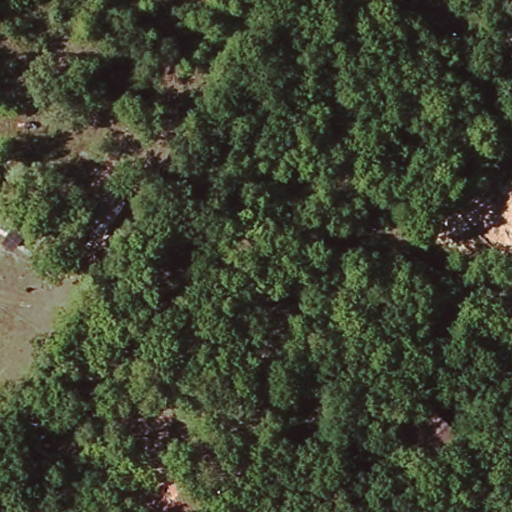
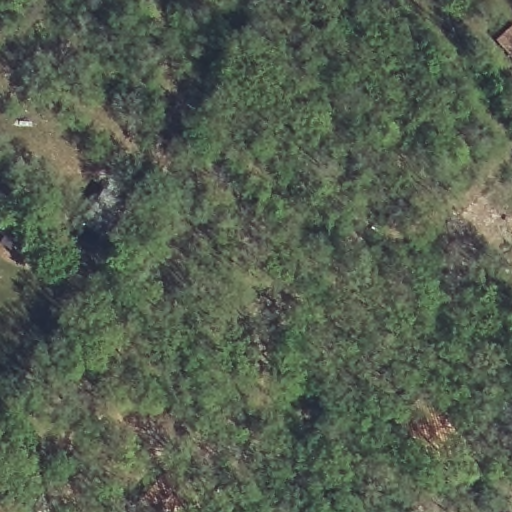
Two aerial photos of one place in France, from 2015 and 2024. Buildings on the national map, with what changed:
unchanged [(127,205),(105,241),(87,230),(108,195),(127,205)]
unchanged [(438,460),(400,415),(423,395),(461,438),(438,460)]
unchanged [(139,501),(168,472),(194,499),(181,512),(149,512),(139,501)]
unchanged [(0,506),(32,495),(37,512),(0,512),(0,506)]

